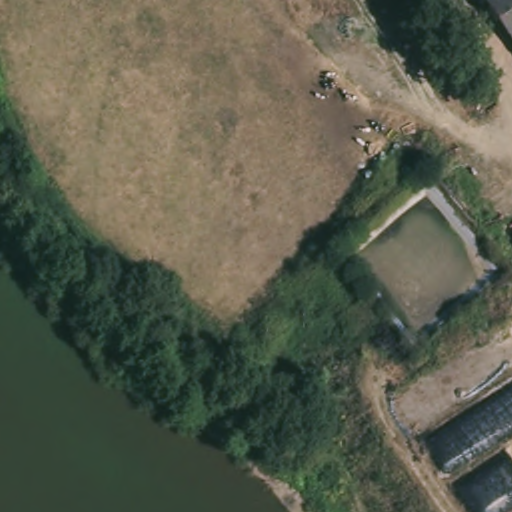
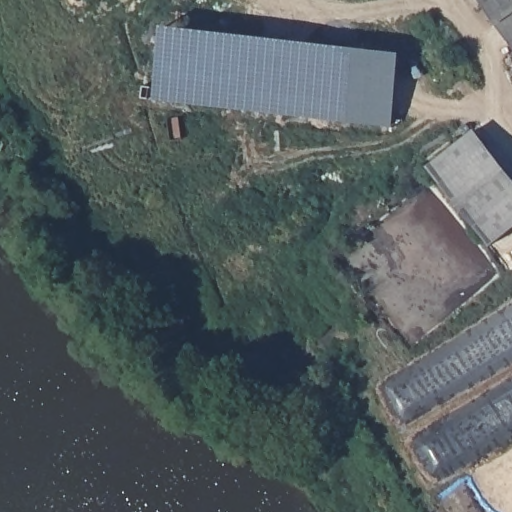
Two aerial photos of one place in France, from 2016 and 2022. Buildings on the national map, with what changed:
unchanged [(512,0),(512,45),(478,0),(512,0)]
new [(156,100),(164,26),(402,53),(393,128),(156,100)]
new [(512,231),(492,247),(427,166),(475,129),(512,174),(512,231)]

